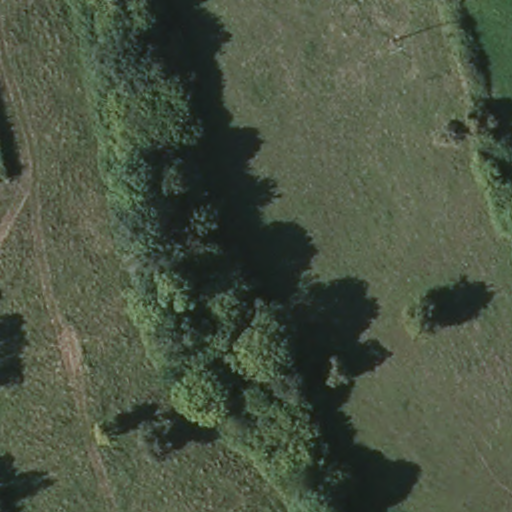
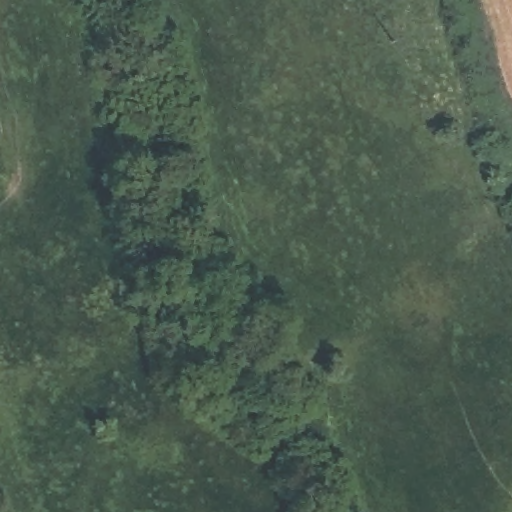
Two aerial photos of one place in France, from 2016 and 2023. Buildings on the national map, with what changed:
[]

